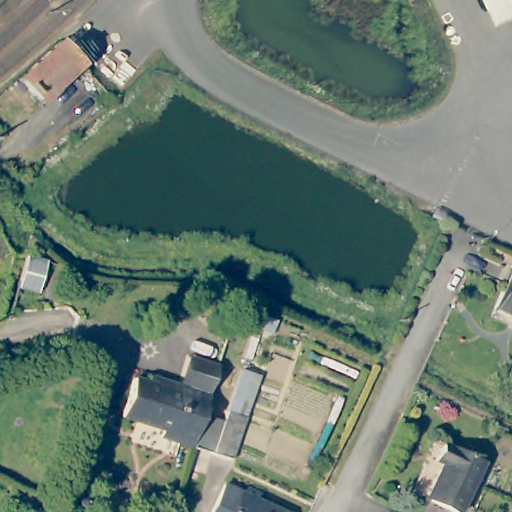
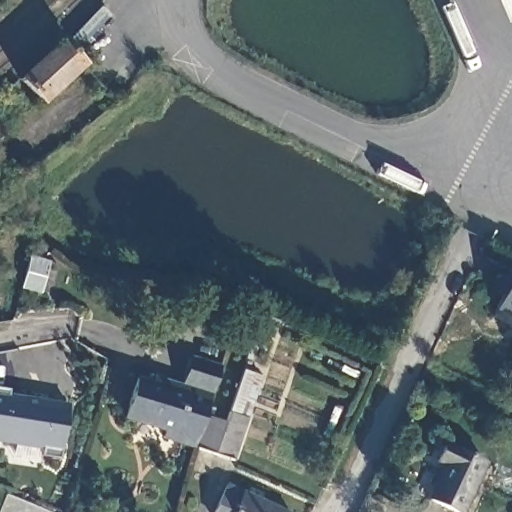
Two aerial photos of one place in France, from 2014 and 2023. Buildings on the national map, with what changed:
unchanged [(85,65),(45,102),(23,77),(63,40),(85,65)]
unchanged [(53,252),(46,284),(25,279),(32,248),(53,252)]
unchanged [(512,273),(512,316),(495,308),(512,273)]
unchanged [(260,336),(252,361),(247,358),(256,335),(260,336)]
unchanged [(181,387),(192,356),(221,366),(208,402),(186,395),(188,388),(181,387)]
unchanged [(243,370),(261,377),(233,461),(215,455),(196,448),(163,437),(164,431),(123,417),(136,378),(150,383),(152,377),(166,382),(181,387),(188,388),(186,395),(208,402),(204,417),(224,423),(243,370)]
new [(9,387),(9,393),(68,403),(59,457),(41,455),(42,449),(0,442),(0,386),(9,387)]
unchanged [(461,512),(456,512),(426,498),(442,465),(435,462),(443,444),(484,463),(461,512)]
unchanged [(214,512),(226,485),(283,512),(214,512)]

